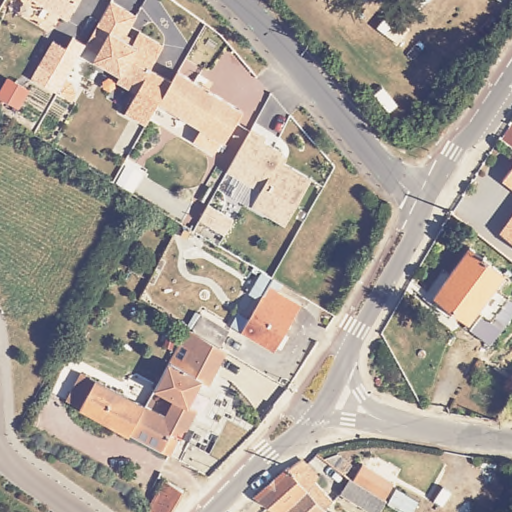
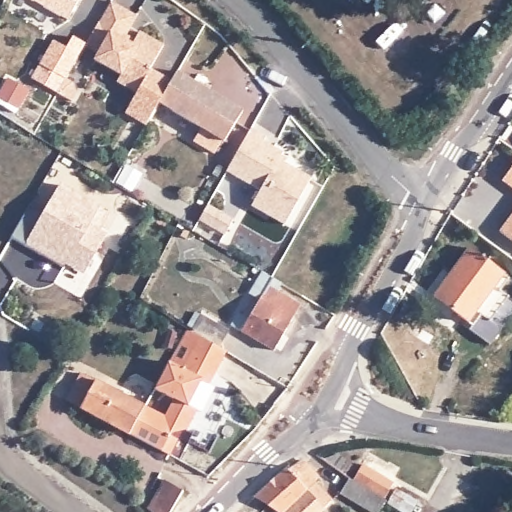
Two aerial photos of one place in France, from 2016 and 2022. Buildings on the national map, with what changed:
unchanged [(30,0),(77,0),(66,21),(30,0)]
unchanged [(135,16),(125,36),(131,41),(137,31),(160,46),(135,96),(114,83),(119,76),(92,60),(103,41),(90,36),(108,1),(135,16)]
unchanged [(66,77),(73,80),(77,94),(73,103),(57,94),(29,78),(50,39),(65,46),(71,36),(84,44),(66,77)]
new [(139,88),(149,68),(171,80),(159,101),(146,126),(124,114),(135,96),(139,88)]
unchanged [(193,80),(195,77),(210,86),(208,88),(243,108),(226,139),(224,138),(216,151),(199,141),(207,128),(159,101),(176,70),(193,80)]
unchanged [(266,135),(264,140),(283,151),(279,158),(312,177),(285,222),(252,203),(261,188),(227,168),(231,161),(251,126),(266,135)]
unchanged [(512,161),(512,190),(498,180),(512,161)]
new [(29,205),(43,212),(61,183),(100,204),(99,206),(109,211),(100,230),(107,234),(82,275),(66,266),(64,269),(10,237),(29,205)]
unchanged [(234,217),(226,230),(200,215),(203,210),(208,202),(234,217)]
unchanged [(512,210),(512,243),(496,232),(512,210)]
unchanged [(182,235),(185,229),(190,232),(187,238),(182,235)]
unchanged [(507,283),(503,280),(496,287),(512,298),(512,315),(490,344),(466,327),(469,323),(435,296),(471,248),(510,278),(507,283)]
unchanged [(234,326),(240,314),(251,320),(262,298),(250,292),(261,271),(271,277),(274,279),(270,287),(301,305),(275,350),(234,326)]
unchanged [(163,451),(130,434),(145,408),(165,418),(175,401),(154,390),(162,376),(169,364),(182,371),(196,347),(182,339),(185,333),(187,330),(192,332),(202,315),(229,331),(220,348),(233,356),(214,388),(207,383),(193,407),(201,412),(189,431),(179,424),(172,436),(179,440),(170,455),(163,451)]
unchanged [(66,400),(81,373),(145,408),(130,434),(66,400)]
unchanged [(257,497),(287,470),(302,461),(318,478),(314,483),(331,501),(321,512),(280,512),(257,497)]
unchanged [(342,494),(350,481),(355,483),(364,468),(395,487),(386,503),(381,512),(375,512),(342,494)]
unchanged [(149,509),(164,481),(183,491),(172,512),(154,512),(149,509)]

